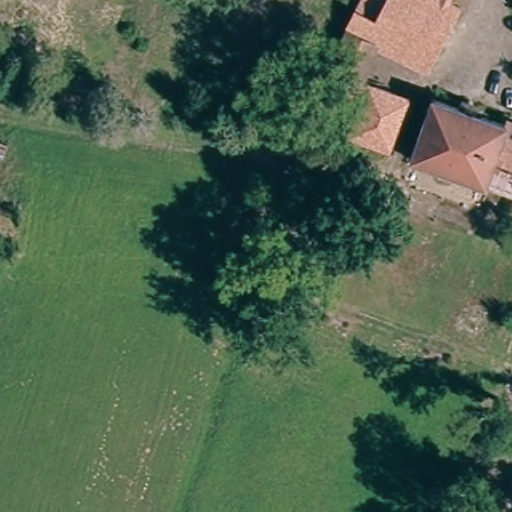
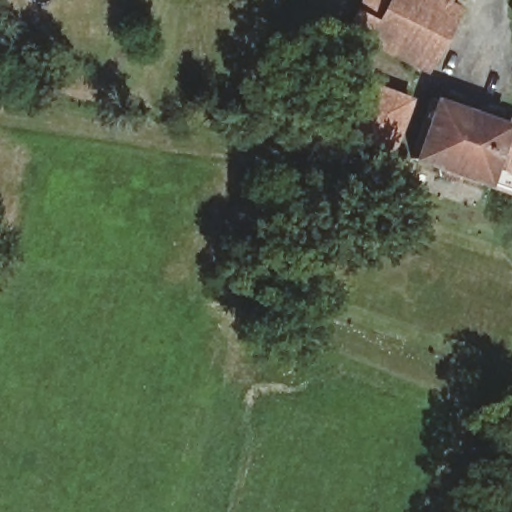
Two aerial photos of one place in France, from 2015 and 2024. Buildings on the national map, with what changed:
unchanged [(429,69),(380,46),(370,81),(408,98),(394,149),(357,134),(366,108),(346,99),(350,84),(342,80),(350,38),(365,0),(447,0),(460,6),(429,69)]
unchanged [(407,155),(431,97),(512,130),(512,194),(456,172),(452,181),(440,179),(440,168),(407,155)]

